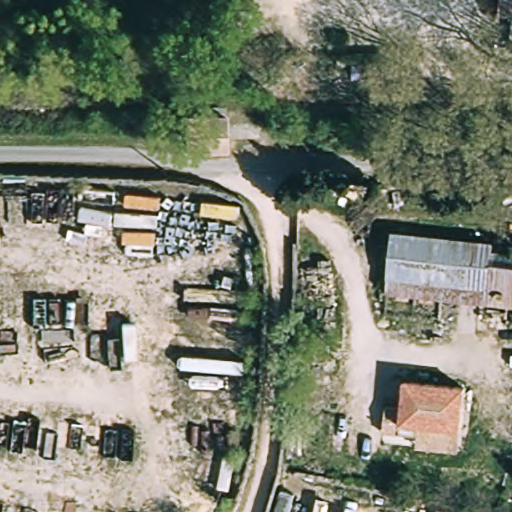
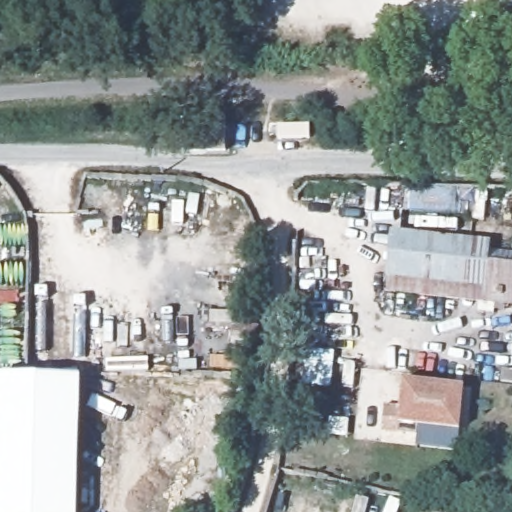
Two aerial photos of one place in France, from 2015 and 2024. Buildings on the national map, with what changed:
unchanged [(500,16),(503,0),(512,0),(512,17),(500,16)]
unchanged [(224,110),(225,156),(180,156),(181,109),(224,110)]
unchanged [(487,235),(485,254),(512,255),(512,301),(480,300),(387,297),(388,267),(397,268),(398,232),(478,234),(487,235)]
new [(80,512),(0,512),(0,378),(84,380),(80,512)]
unchanged [(460,425),(418,423),(418,433),(383,432),(384,405),(400,406),(402,379),(408,379),(462,381),(460,425)]

